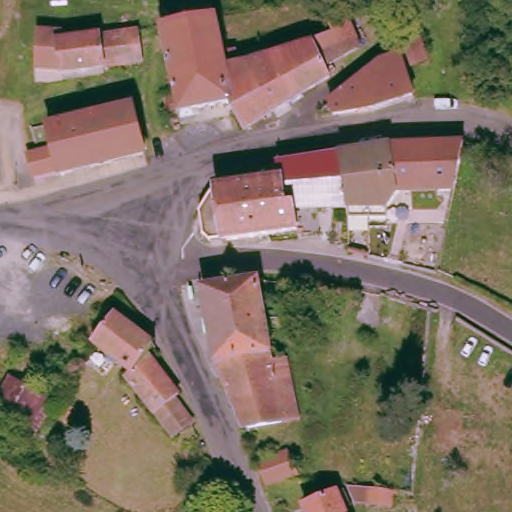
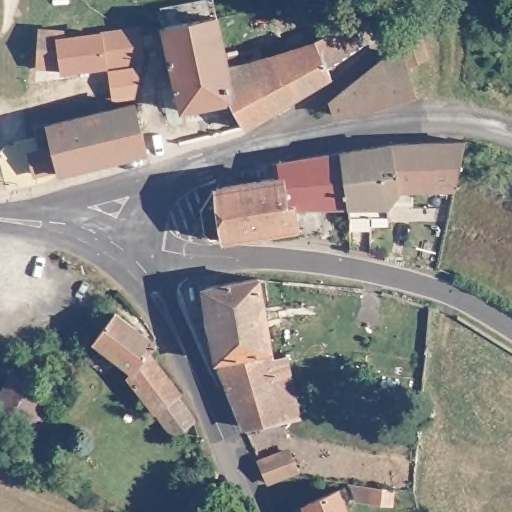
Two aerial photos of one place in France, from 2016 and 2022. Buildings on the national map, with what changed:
unchanged [(233,67),(230,107),(166,118),(161,102),(179,99),(166,29),(220,17),(228,53),(233,67)]
unchanged [(329,81),(245,132),(230,107),(233,67),(228,53),(242,51),(246,55),(259,52),(261,62),(318,51),(335,39),(330,30),(346,22),(358,49),(325,70),(326,72),(329,81)]
unchanged [(143,60),(63,71),(63,67),(36,67),(38,42),(40,31),(63,34),(64,41),(139,32),(143,60)]
unchanged [(429,65),(408,72),(401,50),(421,41),(429,65)]
unchanged [(399,60),(413,97),(376,113),(333,117),(328,107),(381,65),(399,60)]
unchanged [(35,160),(40,158),(59,154),(55,131),(138,110),(151,157),(65,179),(64,173),(45,177),(40,179),(35,160)]
unchanged [(455,189),(406,191),(401,192),(398,177),(394,147),(465,142),(455,189)]
unchanged [(398,177),(365,180),(367,217),(345,217),(344,207),(340,154),(394,147),(398,177)]
unchanged [(213,189),(218,187),(284,180),(281,162),(340,154),(344,207),(319,207),(321,235),(300,238),(298,229),(223,238),(208,238),(202,230),(200,212),(200,207),(213,189)]
unchanged [(390,207),(390,217),(367,217),(365,180),(398,177),(401,192),(390,207)]
unchanged [(298,420),(282,422),(283,426),(246,431),(236,414),(217,366),(204,292),(260,282),(273,362),(288,360),(298,420)]
unchanged [(157,418),(128,378),(131,372),(95,346),(115,318),(156,347),(148,358),(180,400),(178,402),(196,426),(176,442),(157,418)]
unchanged [(0,393),(8,378),(47,400),(58,407),(36,443),(24,436),(0,421),(0,393)]
unchanged [(261,461),(288,448),(297,466),(290,471),(269,481),(261,461)]
unchanged [(390,503),(384,502),(382,508),(363,502),(366,490),(392,497),(390,503)]
unchanged [(306,512),(304,507),(336,491),(345,512),(306,512)]

